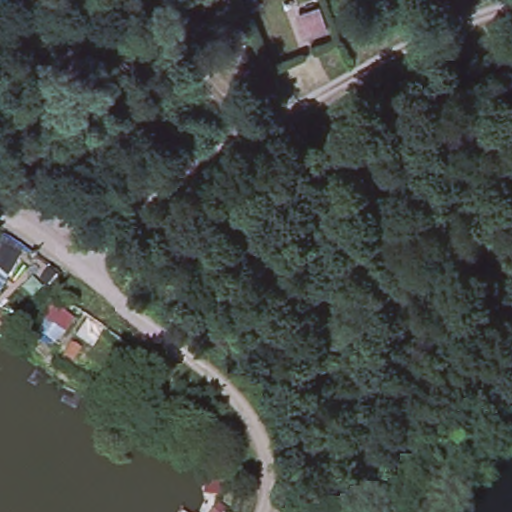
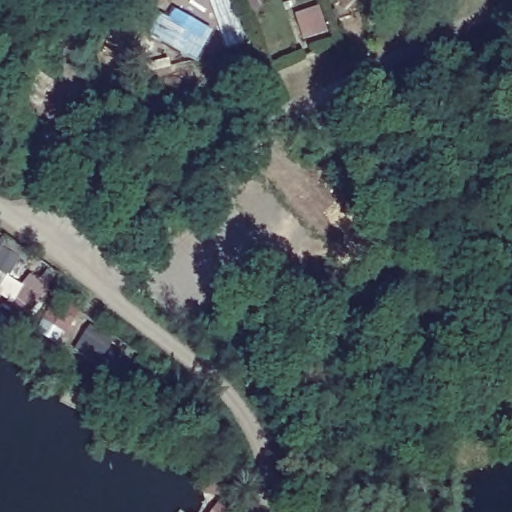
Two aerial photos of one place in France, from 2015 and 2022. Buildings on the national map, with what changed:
unchanged [(316,2),(326,37),(299,41),(290,13),(298,10),(295,0),(315,0),(316,2)]
unchanged [(85,84),(104,71),(110,87),(94,98),(80,107),(71,94),(85,84)]
unchanged [(72,316),(62,338),(57,330),(46,346),(26,332),(47,302),(72,316)]

